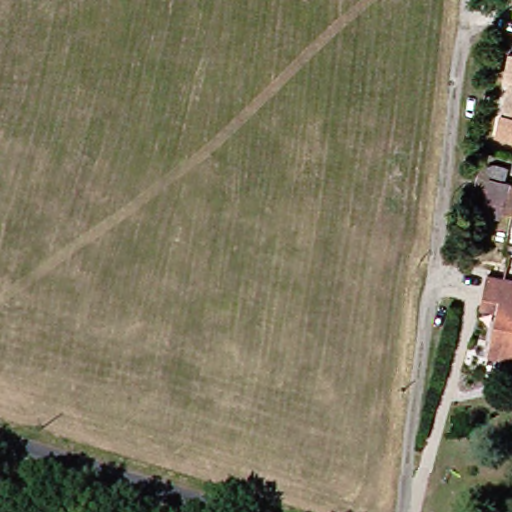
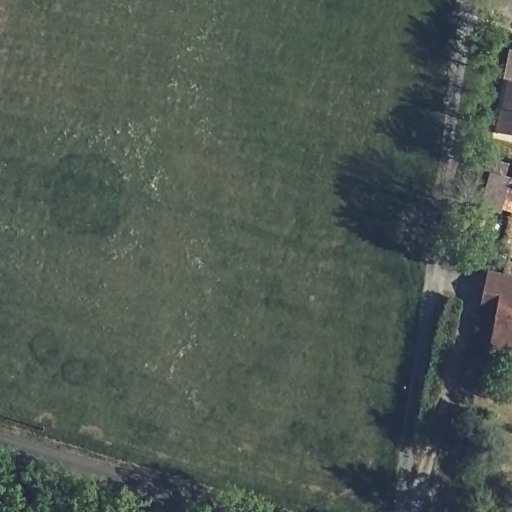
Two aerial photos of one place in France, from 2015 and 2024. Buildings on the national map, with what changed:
unchanged [(502,60),(512,61),(512,89),(497,87),(502,60)]
unchanged [(496,119),(510,121),(512,112),(512,146),(492,143),(496,119)]
unchanged [(503,217),(479,213),(480,209),(473,207),(480,169),(486,170),(484,179),(512,185),(512,212),(504,211),(503,217)]
unchanged [(486,308),(473,305),(481,272),(512,280),(512,360),(507,359),(476,351),(478,341),(486,308)]

